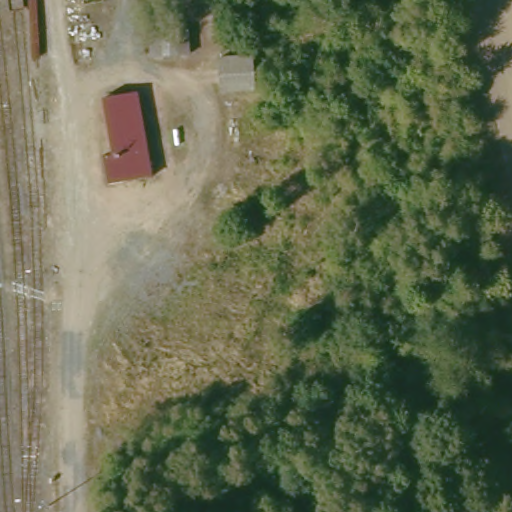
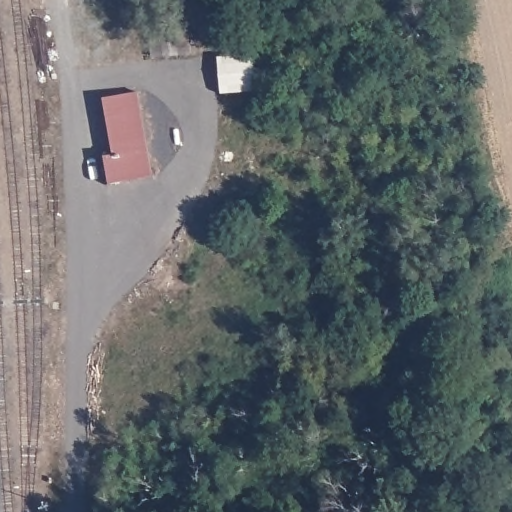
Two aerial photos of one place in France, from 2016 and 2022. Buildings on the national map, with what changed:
unchanged [(248,55),(251,90),(217,92),(214,58),(248,55)]
unchanged [(101,185),(96,157),(107,155),(97,98),(132,92),(147,176),(101,185)]

